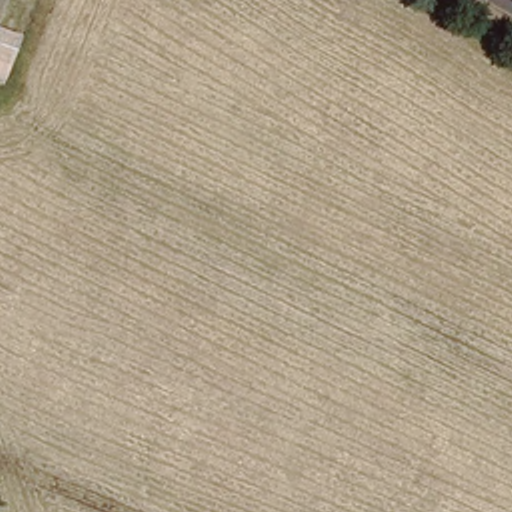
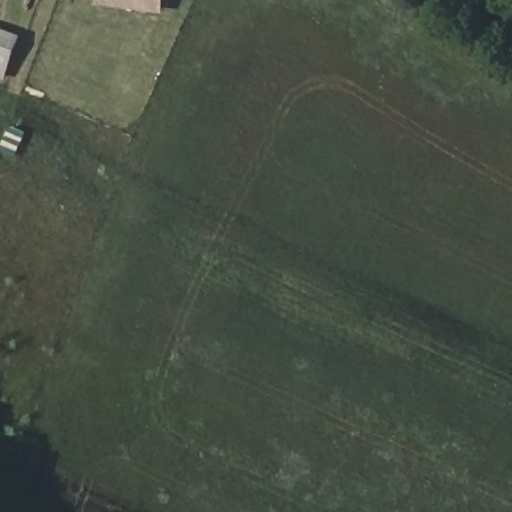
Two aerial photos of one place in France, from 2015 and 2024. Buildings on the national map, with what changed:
new [(99,0),(166,0),(165,13),(99,4),(99,0)]
unchanged [(21,36),(4,81),(0,80),(0,28),(21,36)]

